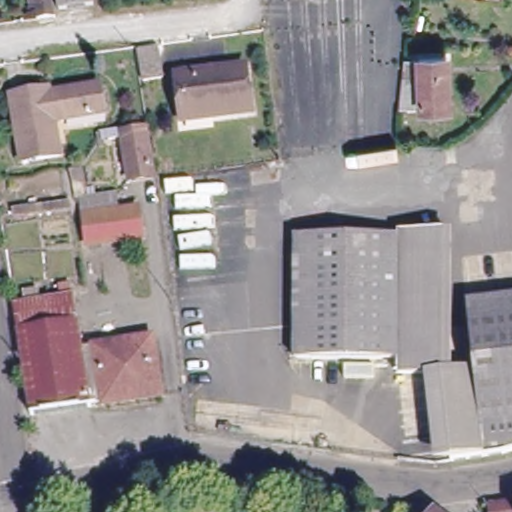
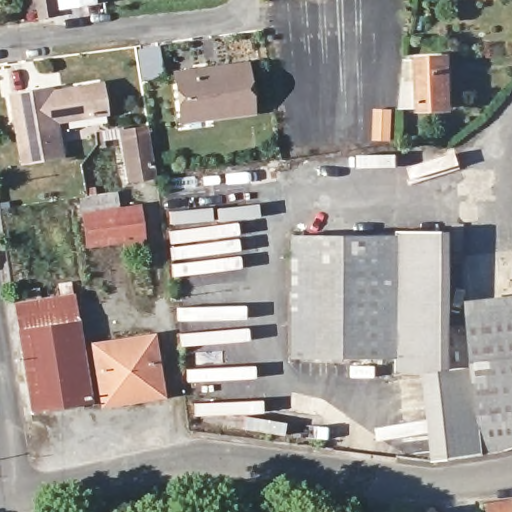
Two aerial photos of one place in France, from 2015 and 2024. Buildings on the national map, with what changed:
unchanged [(41,14),(34,14),(32,0),(57,0),(59,19),(42,21),(41,14)]
unchanged [(61,8),(60,0),(96,0),(96,3),(61,8)]
unchanged [(166,75),(147,77),(142,48),(161,46),(166,75)]
unchanged [(409,52),(425,52),(451,52),(453,101),(427,102),(402,102),(405,76),(409,52)]
unchanged [(256,103),(186,111),(180,67),(250,59),(256,103)]
unchanged [(30,157),(28,137),(23,88),(55,85),(56,92),(71,91),(71,87),(109,82),(112,110),(63,116),(65,131),(66,152),(30,157)]
unchanged [(162,181),(141,185),(134,146),(121,147),(114,148),(113,139),(132,136),(158,132),(160,141),(155,142),(162,181)]
unchanged [(147,239),(93,246),(88,215),(87,206),(123,202),(125,210),(143,209),(147,239)]
unchanged [(292,353),(295,232),(389,235),(382,357),(292,353)]
unchanged [(389,235),(396,236),(397,357),(382,357),(389,235)]
unchanged [(396,236),(433,237),(432,275),(441,275),(440,289),(431,289),(428,373),(397,373),(397,357),(396,236)]
unchanged [(15,301),(72,292),(81,346),(150,333),(159,390),(103,399),(102,396),(88,399),(88,402),(31,411),(15,301)]
unchanged [(477,372),(471,322),(512,317),(512,416),(483,420),(477,372)]
unchanged [(477,372),(483,420),(512,416),(512,449),(504,452),(456,457),(445,376),(477,372)]
unchanged [(512,496),(512,512),(507,512),(502,497),(512,496)]
unchanged [(442,512),(432,512),(436,507),(442,512)]

